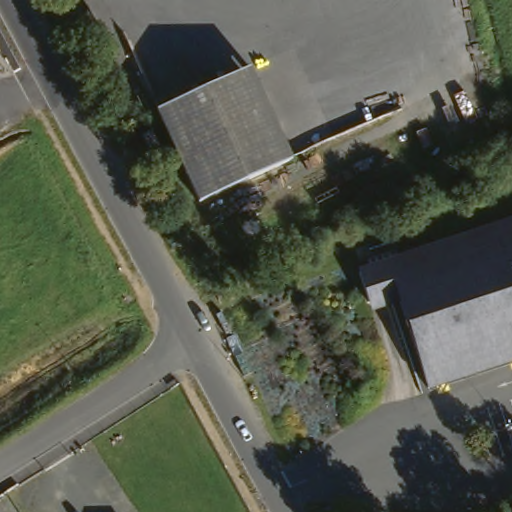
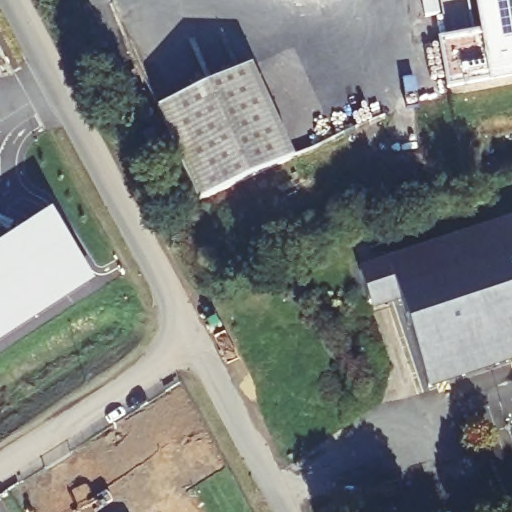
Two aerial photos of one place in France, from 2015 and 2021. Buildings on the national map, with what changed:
new [(476,0),(512,0),(512,68),(446,81),(438,40),(482,32),(476,0)]
unchanged [(251,61),(294,157),(201,200),(157,104),(251,61)]
unchanged [(145,116),(137,99),(147,94),(155,112),(145,116)]
new [(51,204),(90,267),(0,322),(0,235),(51,204)]
unchanged [(512,359),(422,387),(393,290),(367,298),(357,267),(512,221),(512,359)]

